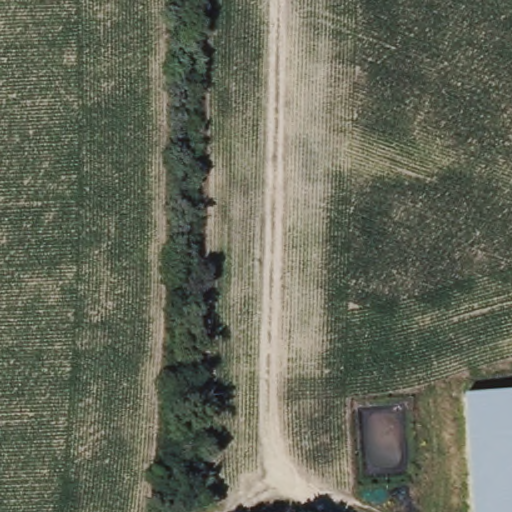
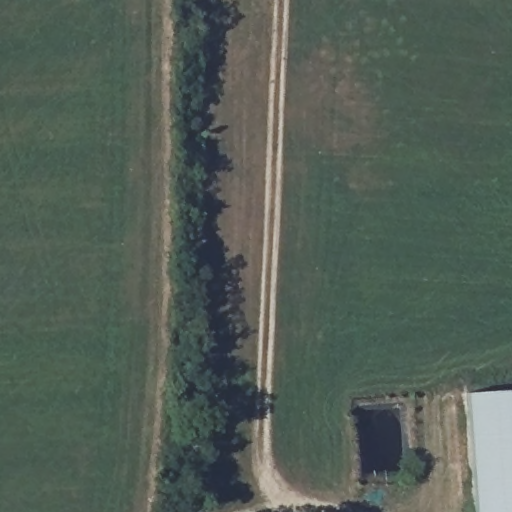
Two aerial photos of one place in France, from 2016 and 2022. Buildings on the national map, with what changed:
unchanged [(476,512),(464,393),(512,391),(512,512),(476,512)]

